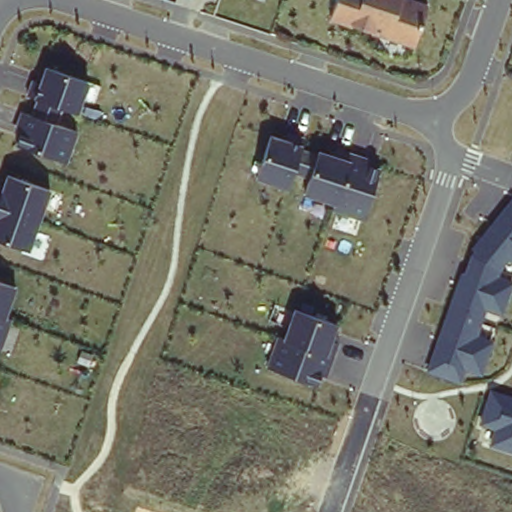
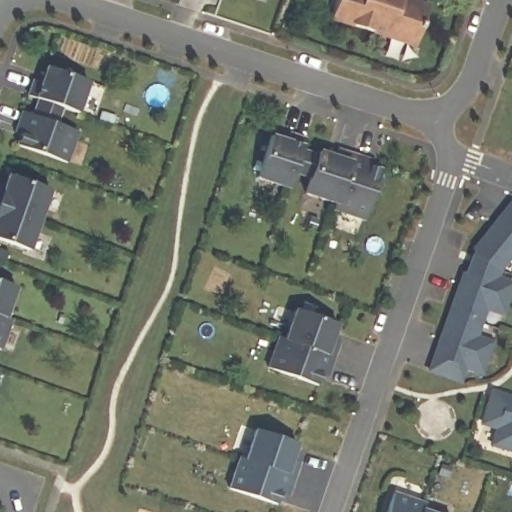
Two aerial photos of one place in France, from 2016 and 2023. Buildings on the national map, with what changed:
unchanged [(415,49),(330,21),(337,0),(414,0),(429,5),(415,49)]
unchanged [(14,145),(16,137),(10,134),(18,112),(30,114),(34,100),(24,98),(29,81),(37,84),(43,65),(87,81),(76,114),(65,109),(60,126),(76,132),(65,164),(14,145)]
unchanged [(364,221),(332,211),(335,206),(304,196),(307,183),(291,177),(288,190),(255,177),(270,134),(350,160),(352,153),(372,159),(371,165),(382,169),(364,221)]
unchanged [(0,241),(0,187),(5,174),(48,187),(27,250),(0,241)]
unchanged [(470,252),(512,200),(512,265),(510,263),(501,270),(499,280),(512,284),(512,286),(503,317),(485,313),(480,336),(492,340),(481,375),(466,372),(462,384),(428,371),(461,270),(470,252)]
unchanged [(15,285),(5,317),(10,319),(0,349),(0,281),(15,285)]
unchanged [(277,339),(283,340),(293,310),(336,325),(332,341),(338,345),(323,389),(268,368),(277,339)]
unchanged [(494,431),(478,426),(490,388),(512,395),(512,454),(488,447),(494,431)]
new [(300,442),(295,457),(303,460),(294,489),(286,486),(280,502),(232,486),(242,456),(250,458),(259,428),(300,442)]
new [(426,508),(437,512),(391,512),(398,492),(428,502),(426,508)]

